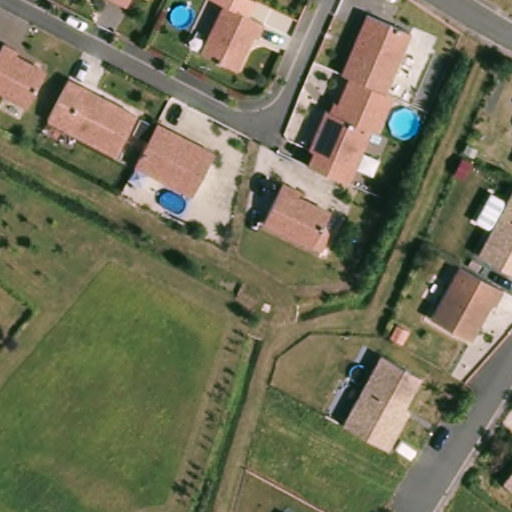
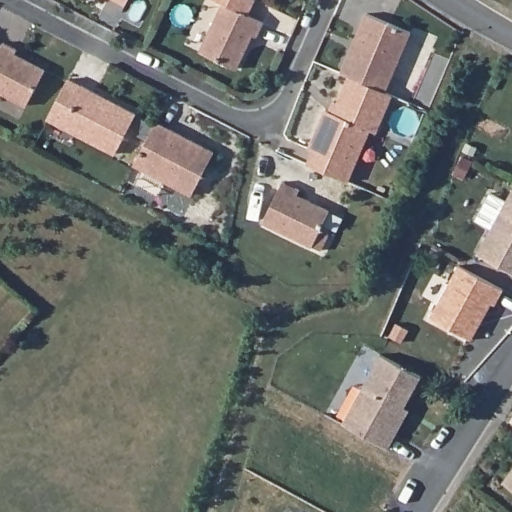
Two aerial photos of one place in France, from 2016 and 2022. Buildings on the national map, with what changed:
unchanged [(128,13),(103,0),(135,0),(128,13)]
unchanged [(227,12),(266,32),(260,46),(255,43),(239,77),(205,61),(227,12)]
unchanged [(370,24),(413,42),(388,102),(372,96),(357,90),(345,84),(370,24)]
unchanged [(21,57),(19,61),(49,77),(30,112),(0,97),(0,63),(7,49),(21,57)]
unchanged [(50,124),(69,88),(136,123),(115,163),(48,128),(50,124)]
unchanged [(380,144),(375,141),(350,191),(311,172),(317,159),(313,157),(332,120),(336,121),(341,111),(345,114),(357,90),(372,96),(388,102),(395,106),(380,144)]
unchanged [(148,147),(157,130),(215,161),(193,203),(135,172),(148,147)]
unchanged [(285,190),(302,198),(300,204),(312,210),(332,220),(325,233),(330,236),(332,238),(333,241),(325,258),(265,231),(285,190)]
unchanged [(477,251),(512,190),(512,270),(477,251)]
unchanged [(472,337),(431,315),(460,263),(505,288),(496,303),(493,301),(485,315),(480,323),(472,337)]
unchanged [(395,437),(387,452),(342,427),(380,357),(420,379),(404,410),(408,412),(395,437)]
unchanged [(512,468),(512,481),(505,476),(512,468)]

